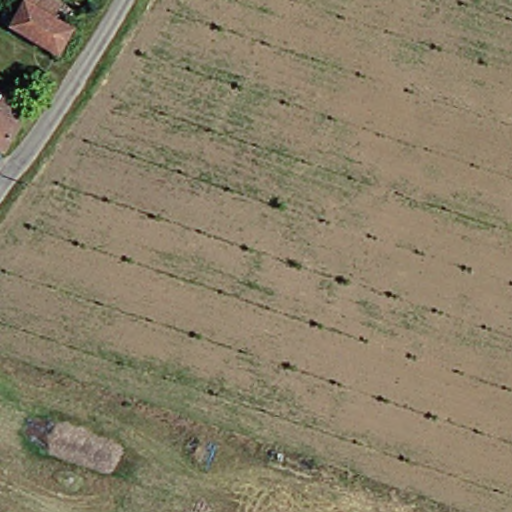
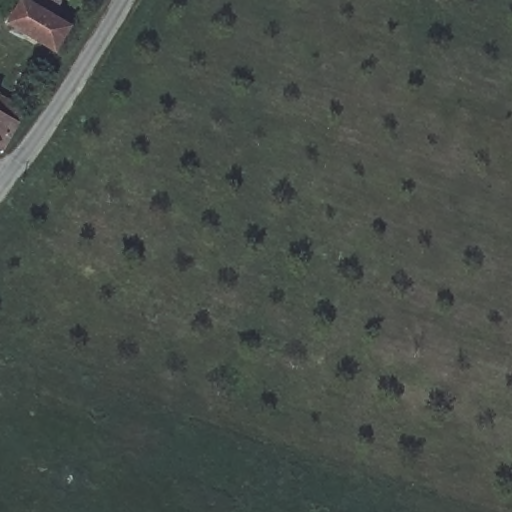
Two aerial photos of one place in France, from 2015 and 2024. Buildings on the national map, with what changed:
unchanged [(17,0),(53,0),(57,2),(49,16),(68,27),(52,54),(2,26),(17,0)]
unchanged [(10,122),(15,126),(0,147),(0,101),(19,111),(10,122)]

